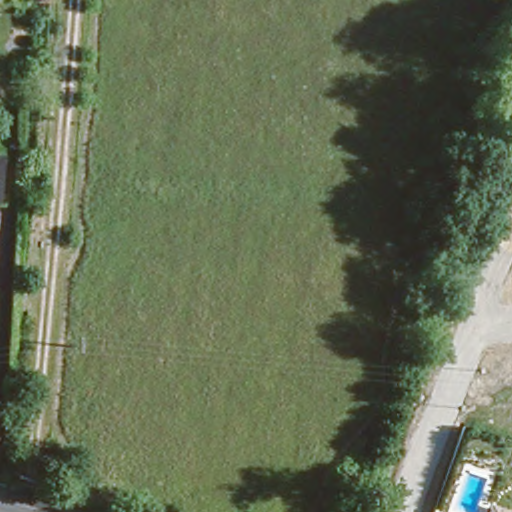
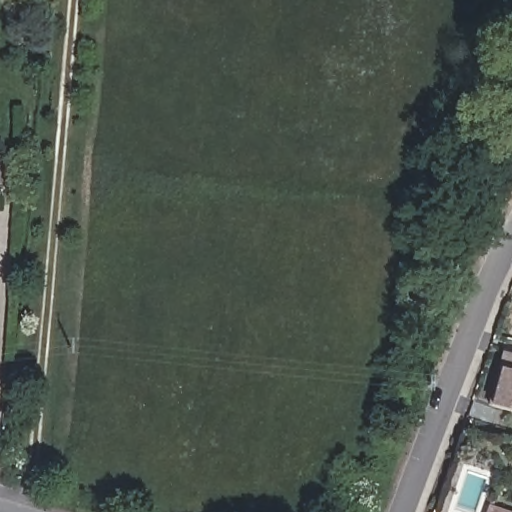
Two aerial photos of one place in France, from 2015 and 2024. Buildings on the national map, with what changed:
new [(503,349),(512,351),(512,412),(488,406),(503,349)]
new [(507,512),(490,512),(492,507),(507,512)]

